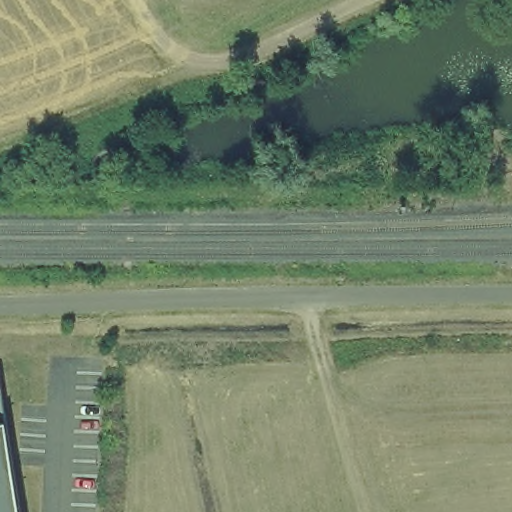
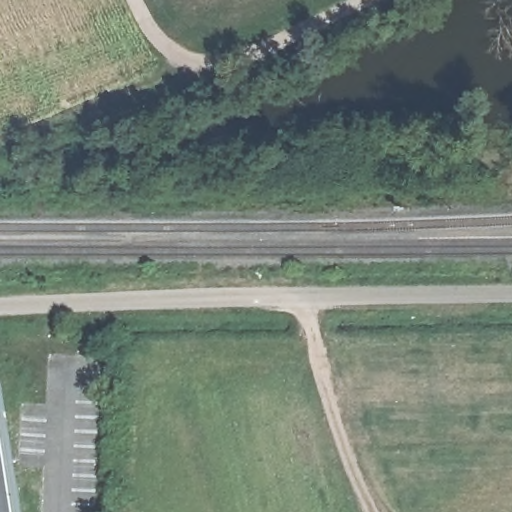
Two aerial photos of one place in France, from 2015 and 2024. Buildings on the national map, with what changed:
unchanged [(22,512),(0,512),(0,376),(2,375),(22,512)]

